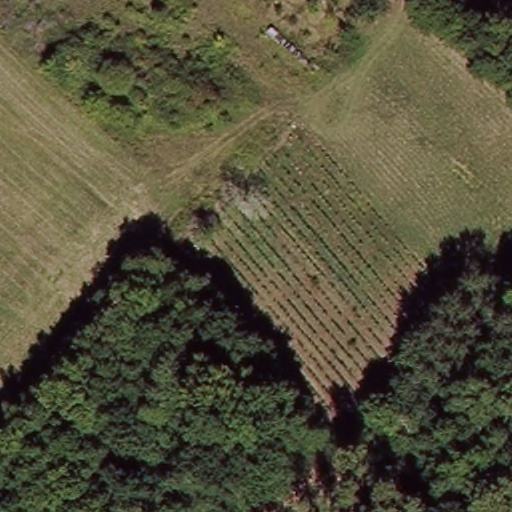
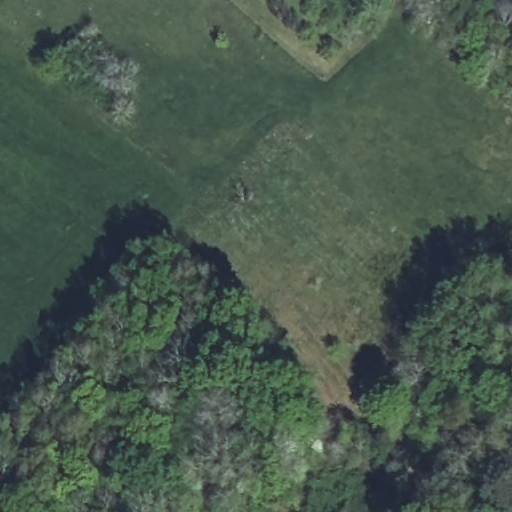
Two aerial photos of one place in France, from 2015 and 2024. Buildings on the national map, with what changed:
[]

